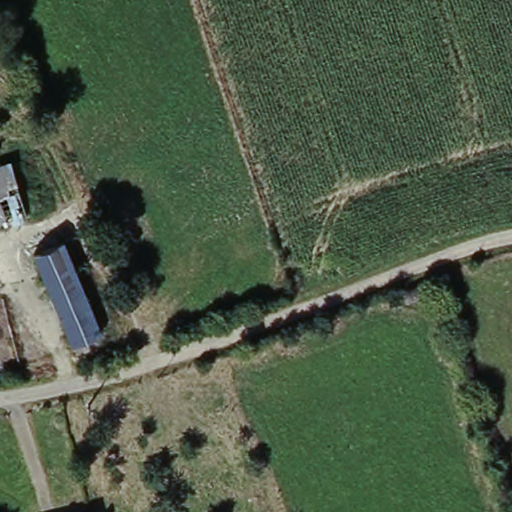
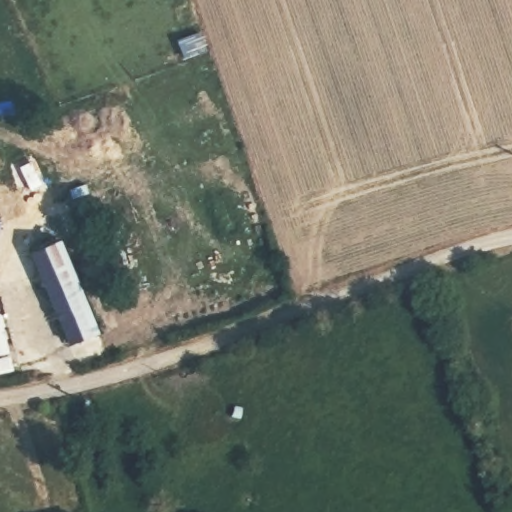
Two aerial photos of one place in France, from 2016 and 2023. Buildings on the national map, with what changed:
unchanged [(97,337),(70,346),(31,251),(60,239),(91,319),(97,337)]

